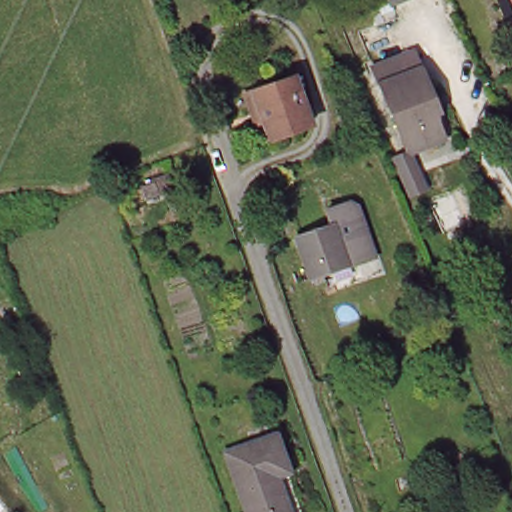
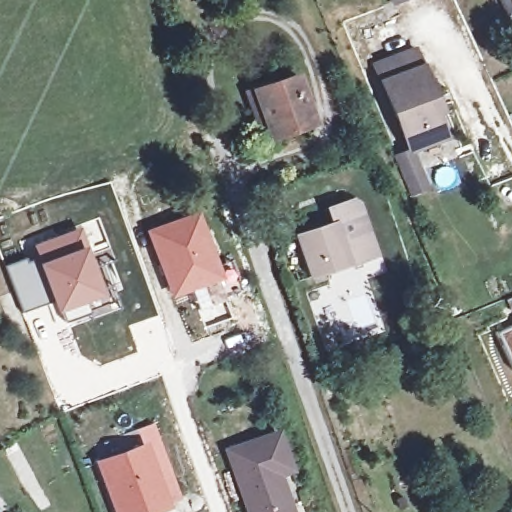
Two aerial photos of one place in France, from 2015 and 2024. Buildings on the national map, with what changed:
unchanged [(394,0),(406,0),(397,5),(394,0)]
unchanged [(430,99),(446,139),(411,153),(382,83),(375,66),(416,50),(422,66),(434,96),(430,99)]
unchanged [(313,124),(273,139),(266,120),(256,123),(245,93),(255,89),(295,75),(313,124)]
unchanged [(328,210),(352,201),(359,204),(377,255),(314,278),(297,236),(334,223),(328,210)]
new [(197,209),(226,280),(172,300),(145,229),(197,209)]
new [(120,308),(91,319),(89,314),(66,322),(61,310),(56,312),(52,299),(22,313),(5,267),(26,258),(27,262),(38,257),(34,245),(79,228),(95,266),(103,264),(120,308)]
unchanged [(508,300),(512,298),(512,310),(508,300)]
unchanged [(228,452),(277,435),(290,470),(277,475),(290,512),(249,512),(228,452)]
new [(166,507),(149,512),(119,512),(101,464),(143,448),(166,507)]

